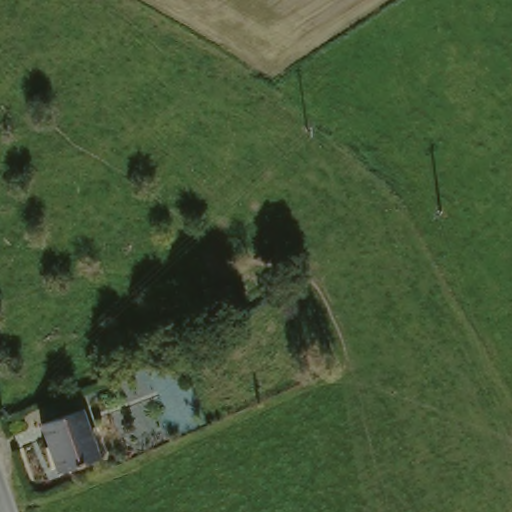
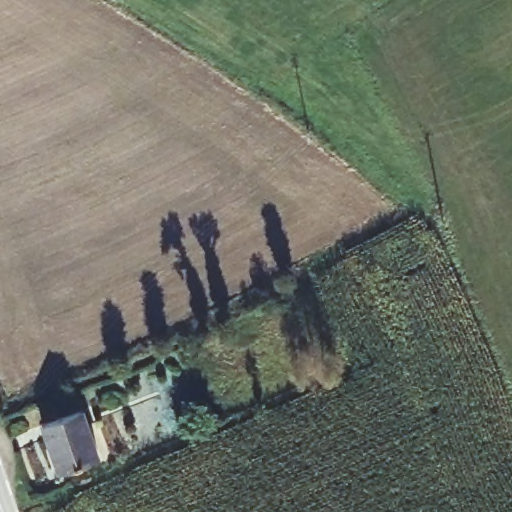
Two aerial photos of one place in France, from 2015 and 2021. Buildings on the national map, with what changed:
unchanged [(78,403),(95,451),(56,465),(39,416),(78,403)]

